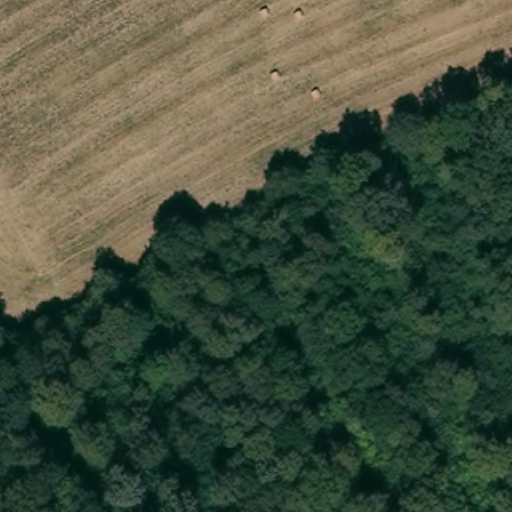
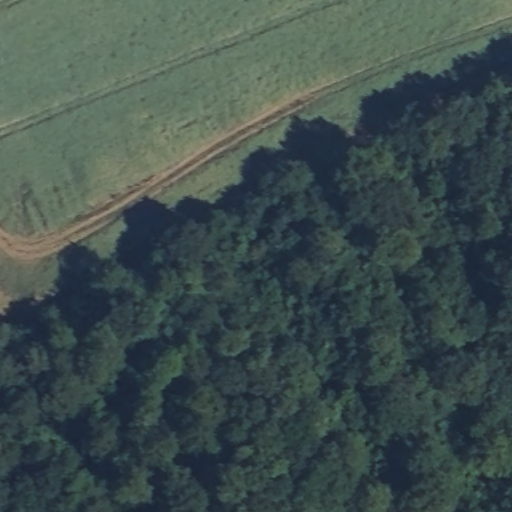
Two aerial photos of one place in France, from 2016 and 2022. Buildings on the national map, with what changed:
[]

